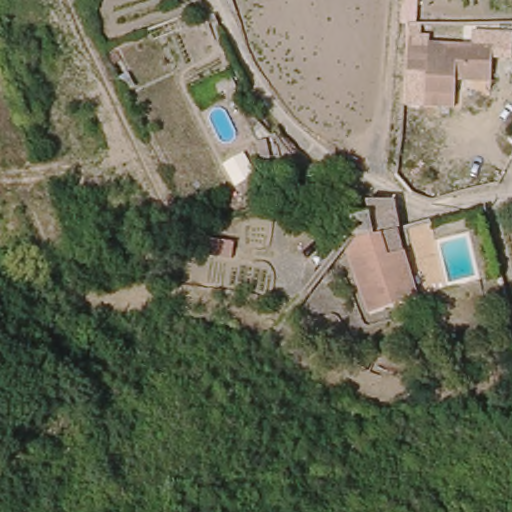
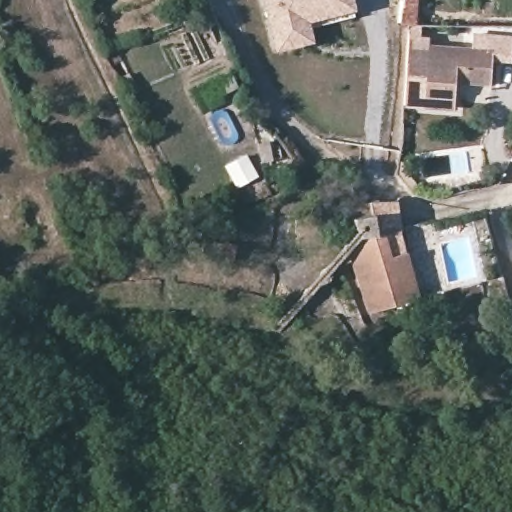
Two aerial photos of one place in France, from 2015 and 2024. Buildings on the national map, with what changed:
new [(306,29),(310,42),(277,50),(264,0),(349,0),(353,16),(306,29)]
unchanged [(423,105),(425,92),(426,67),(407,66),(409,37),(430,39),(430,45),(493,50),(491,83),(457,80),(456,95),(454,107),(423,105)]
unchanged [(363,304),(351,235),(360,234),(371,231),(369,211),(368,195),(392,192),(398,224),(407,223),(412,250),(396,253),(400,268),(415,265),(422,292),(403,296),(383,301),(363,304)]
unchanged [(436,215),(444,252),(414,259),(412,250),(407,223),(436,215)]
unchanged [(193,245),(226,244),(226,260),(193,261),(193,245)]

